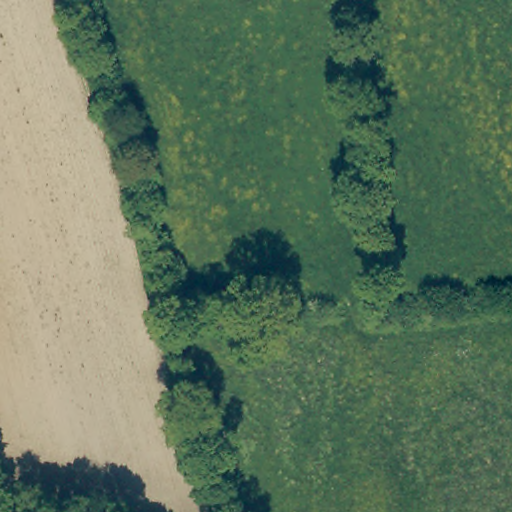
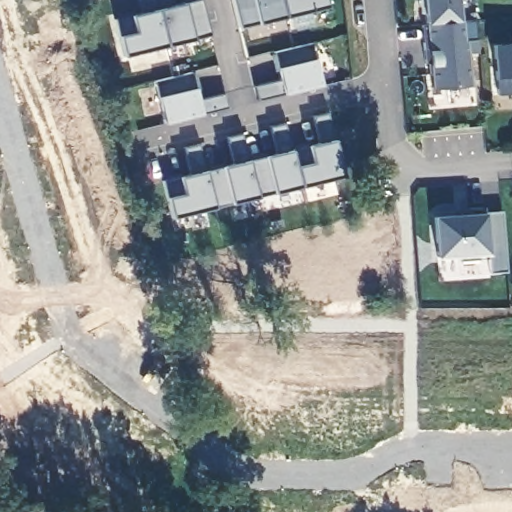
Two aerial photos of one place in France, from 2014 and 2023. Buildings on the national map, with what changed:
new [(124,55),(120,35),(117,19),(130,15),(139,13),(138,0),(175,0),(177,4),(196,0),(201,0),(211,35),(192,39),(124,55)]
new [(283,0),(325,0),(327,6),(287,17),(283,0)]
new [(464,19),(470,87),(432,90),(426,25),(423,0),(458,0),(460,20),(464,19)]
new [(322,85),(283,96),(261,99),(256,86),(281,82),(277,67),(283,66),(275,52),(311,43),(322,85)]
new [(512,45),(512,94),(497,95),(495,78),(492,46),(512,45)]
new [(201,113),(164,122),(157,98),(157,81),(191,73),(196,87),(199,100),(226,94),(229,107),(201,113)]
new [(171,218),(166,198),(171,197),(166,182),(178,178),(192,175),(186,149),(199,145),(205,170),(236,163),(225,138),(241,135),(248,160),(265,157),(282,152),(272,127),(284,125),(289,150),(308,145),(325,142),(313,117),(326,114),(343,175),(171,218)]
new [(485,213),(501,212),(506,273),(489,274),(487,255),(436,257),(433,217),(485,213)]

